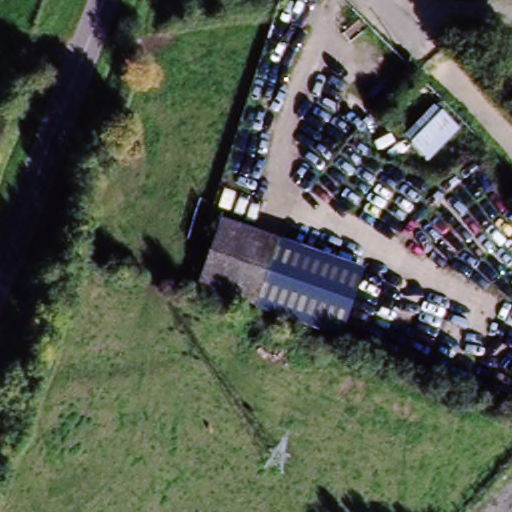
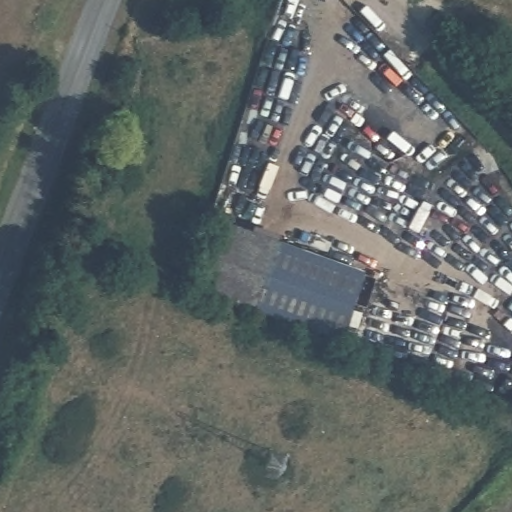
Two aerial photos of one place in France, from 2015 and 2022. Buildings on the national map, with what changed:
unchanged [(403,134),(433,105),(448,121),(418,150),(403,134)]
unchanged [(338,339),(195,293),(217,225),(360,272),(338,339)]

